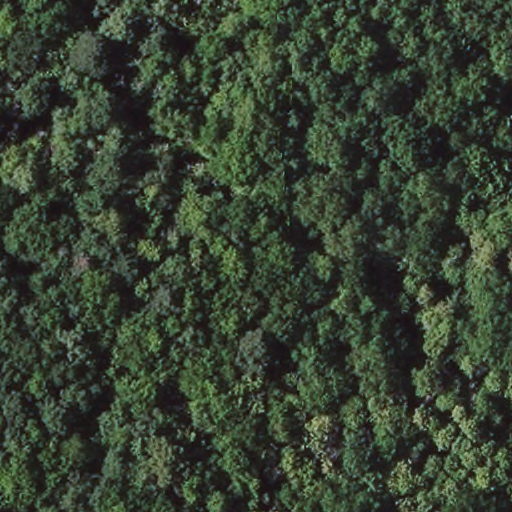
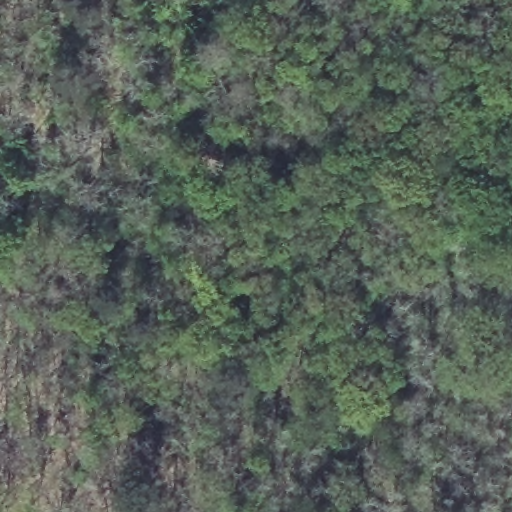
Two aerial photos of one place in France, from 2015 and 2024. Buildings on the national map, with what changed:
[]

